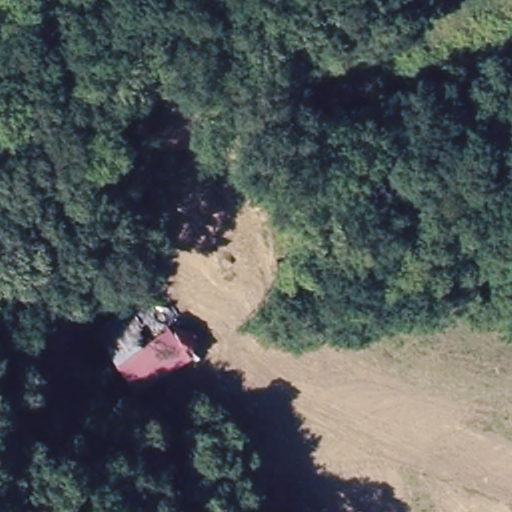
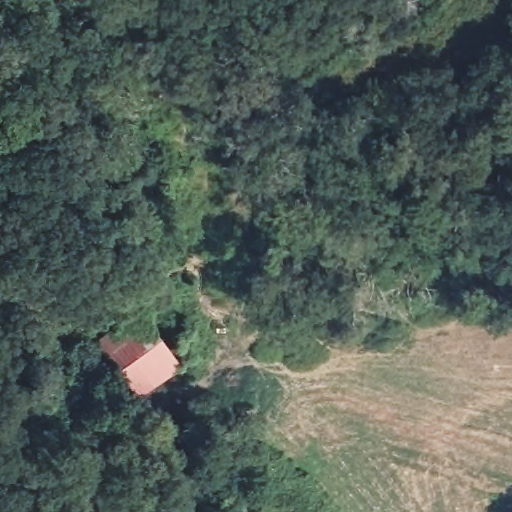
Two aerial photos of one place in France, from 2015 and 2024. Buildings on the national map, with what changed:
unchanged [(209,349),(136,402),(101,344),(172,294),(209,349)]

